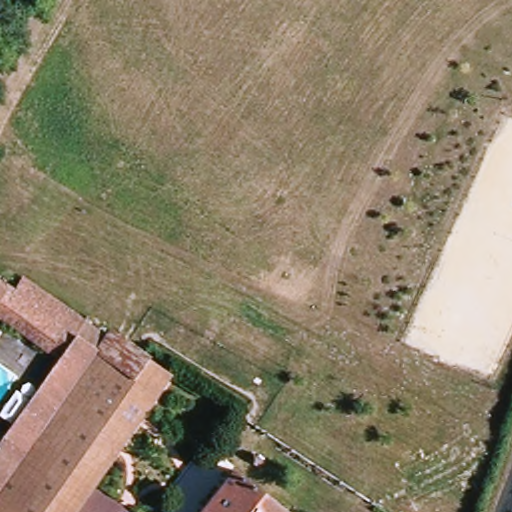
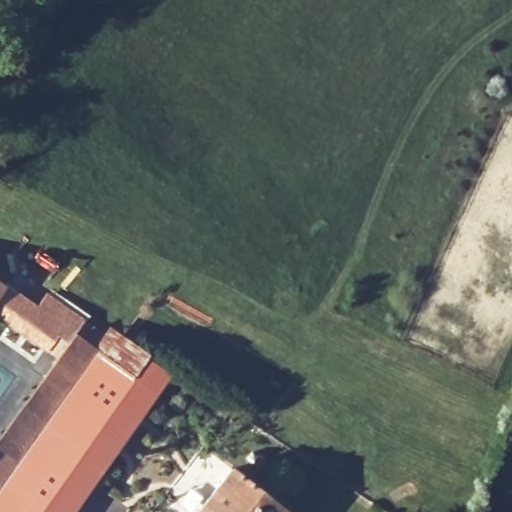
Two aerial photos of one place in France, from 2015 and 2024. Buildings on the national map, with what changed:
unchanged [(51,322),(61,328),(48,346),(0,312),(0,286),(10,293),(20,281),(60,309),(51,322)]
unchanged [(130,347),(148,360),(170,377),(156,396),(73,512),(0,512),(0,437),(70,335),(96,352),(109,332),(130,347)]
unchanged [(234,470),(283,512),(200,512),(203,510),(234,470)]

